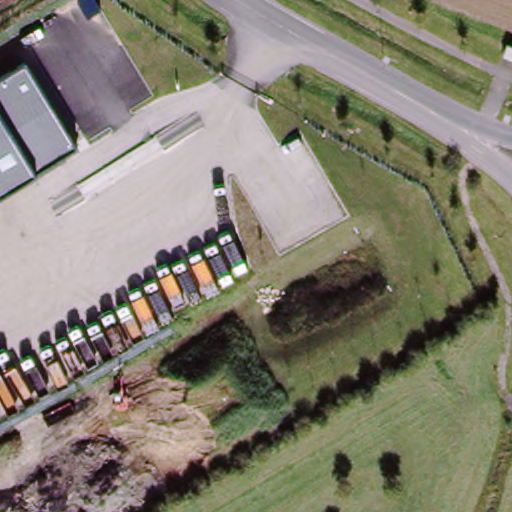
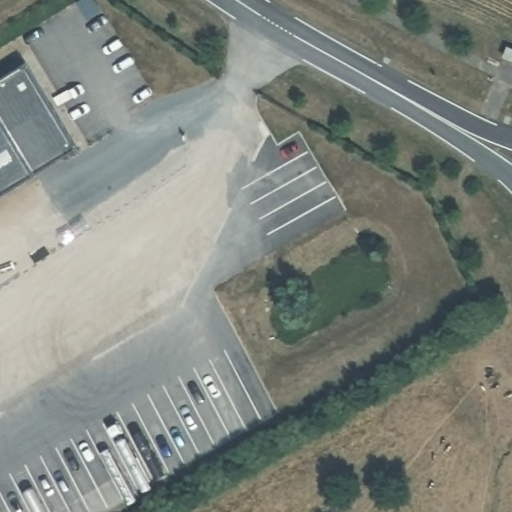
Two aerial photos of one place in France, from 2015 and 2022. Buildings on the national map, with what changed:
unchanged [(75,150),(35,173),(0,194),(0,81),(25,66),(75,150)]

